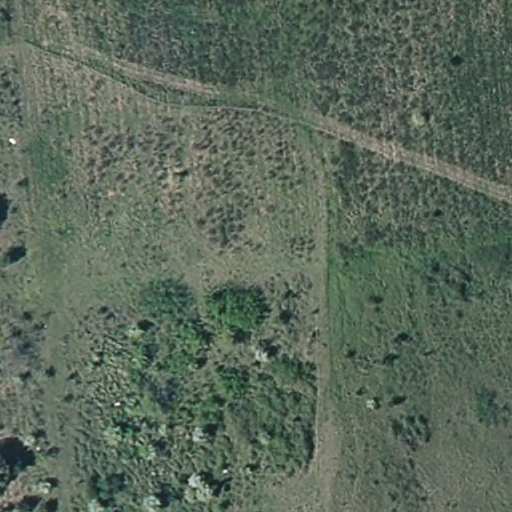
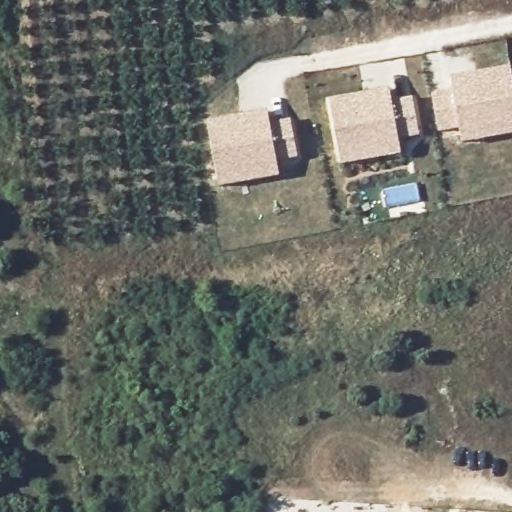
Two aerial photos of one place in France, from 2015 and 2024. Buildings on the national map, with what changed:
new [(452,88),(450,77),(511,66),(512,71),(512,134),(462,143),(459,128),(439,132),(431,94),(452,88)]
new [(392,99),(413,97),(420,136),(399,138),(402,154),(341,165),(329,99),(390,88),(392,99)]
new [(270,121),(291,120),(298,158),(277,160),(279,176),(219,188),(207,121),(268,110),(270,121)]

